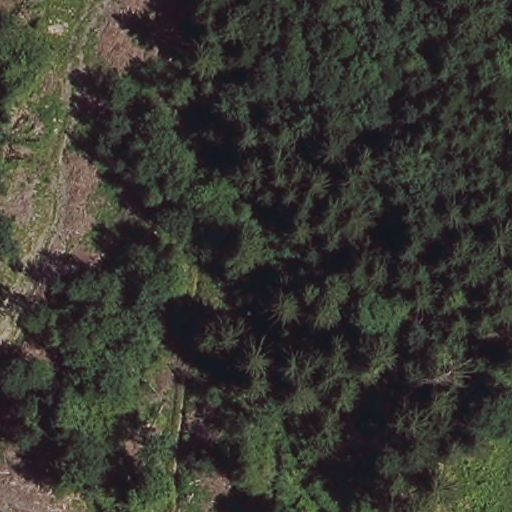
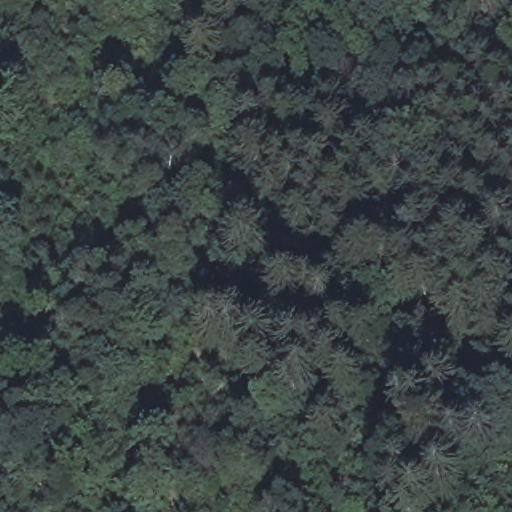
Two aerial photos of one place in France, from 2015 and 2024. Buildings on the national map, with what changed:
[]

